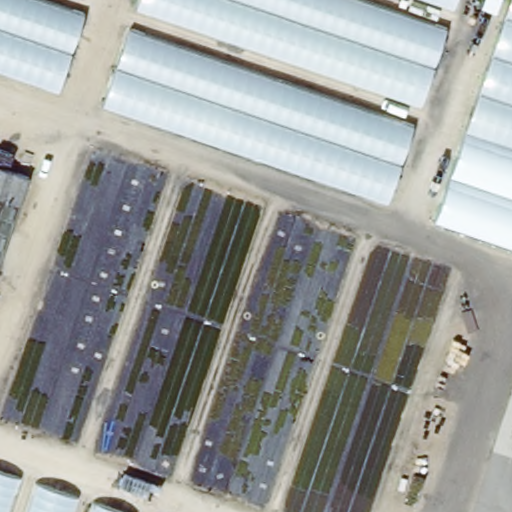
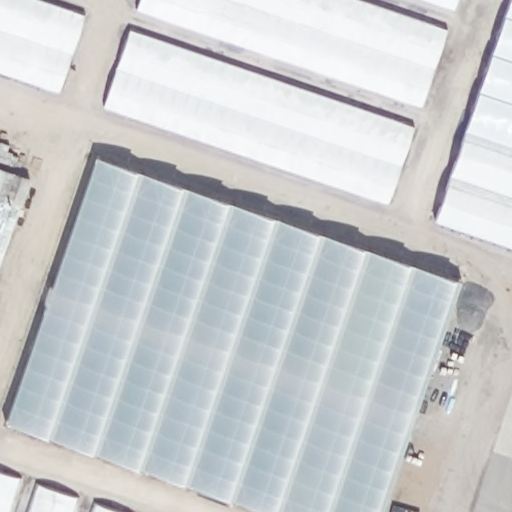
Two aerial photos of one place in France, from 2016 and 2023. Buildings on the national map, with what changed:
unchanged [(64,94),(0,74),(0,0),(46,0),(87,14),(64,94)]
unchanged [(389,204),(100,107),(135,0),(368,0),(449,27),(389,204)]
unchanged [(452,10),(424,0),(455,0),(452,10)]
unchanged [(432,219),(507,0),(512,0),(512,247),(432,219)]
new [(273,512),(2,421),(95,153),(460,279),(382,512),(273,512)]
unchanged [(0,257),(0,167),(27,177),(0,257)]
unchanged [(0,512),(0,473),(116,512),(0,512)]

